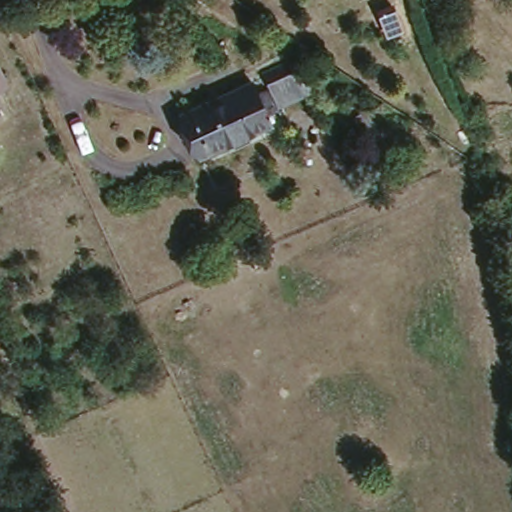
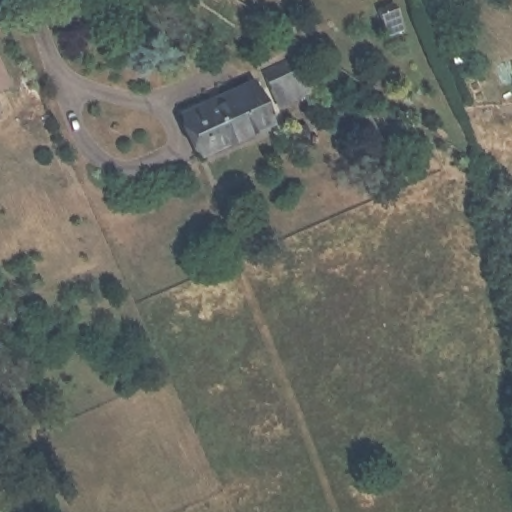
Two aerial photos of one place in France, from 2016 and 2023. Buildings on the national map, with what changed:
unchanged [(268,71),(302,60),(313,92),(280,104),(268,71)]
unchanged [(0,88),(0,62),(9,84),(0,88)]
unchanged [(251,80),(268,122),(204,151),(186,108),(251,80)]

